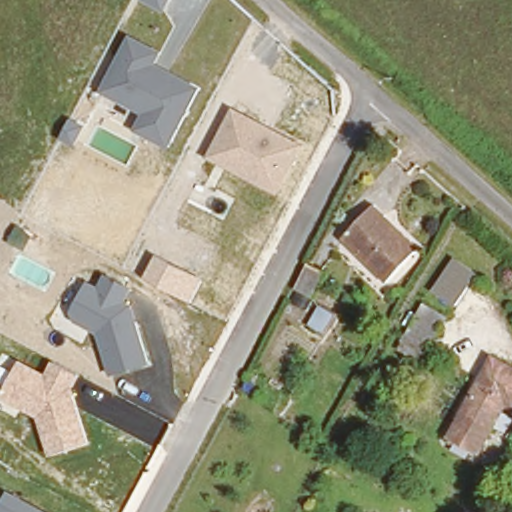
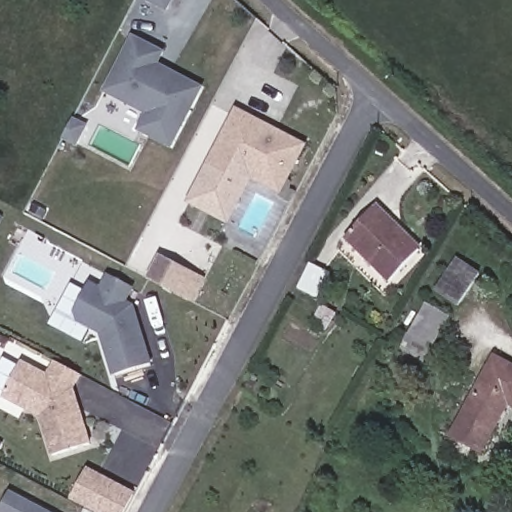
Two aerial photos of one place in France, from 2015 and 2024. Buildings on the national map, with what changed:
new [(166,9),(149,0),(170,0),(166,9)]
unchanged [(205,87),(173,151),(136,130),(144,114),(103,91),(135,35),(166,52),(160,65),(205,87)]
unchanged [(307,146),(283,194),(211,157),(237,107),(307,146)]
new [(211,157),(253,179),(230,224),(187,202),(211,157)]
unchanged [(341,240),(372,203),(384,214),(420,244),(414,252),(390,280),(341,240)]
unchanged [(193,303),(146,277),(159,254),(206,278),(193,303)]
unchanged [(454,297),(432,285),(448,256),(470,268),(454,297)]
unchanged [(299,260),(321,270),(311,291),(289,280),(299,260)]
unchanged [(74,311),(90,281),(100,286),(106,275),(135,288),(127,302),(135,306),(152,364),(111,376),(100,335),(76,322),(74,311)]
unchanged [(427,347),(402,333),(421,300),(446,315),(427,347)]
unchanged [(1,398),(22,360),(48,373),(54,361),(81,375),(75,389),(92,443),(51,456),(40,417),(1,398)]
unchanged [(502,415),(489,441),(459,426),(488,368),(512,380),(512,420),(502,415)]
new [(95,512),(71,498),(87,465),(138,493),(127,512),(95,512)]
unchanged [(49,512),(0,512),(0,507),(10,490),(49,512)]

